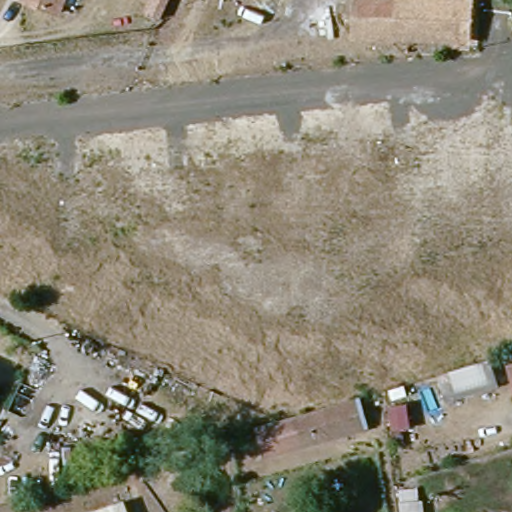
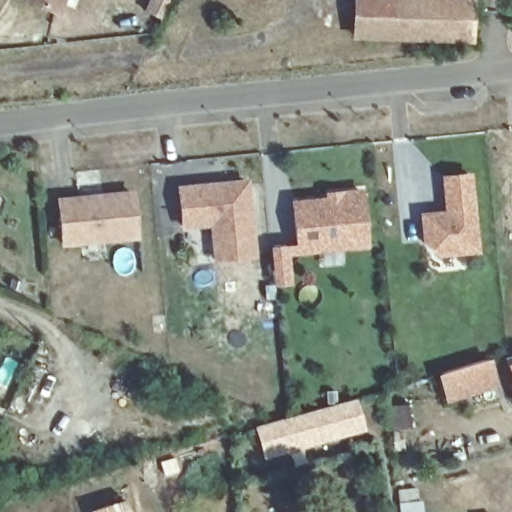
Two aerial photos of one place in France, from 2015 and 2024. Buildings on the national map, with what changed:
unchanged [(26,0),(63,0),(59,11),(26,0)]
unchanged [(148,0),(164,0),(160,8),(147,2),(148,0)]
unchanged [(470,39),(360,34),(363,0),(451,0),(473,1),(470,39)]
new [(445,210),(441,174),(472,171),(480,252),(442,256),(422,240),(419,211),(445,210)]
new [(250,177),(258,257),(212,262),(210,225),(181,228),(177,185),(250,177)]
new [(295,244),(291,200),(325,197),(325,191),(361,188),(367,247),(290,254),(292,284),(275,285),(270,246),(295,244)]
new [(135,189),(140,239),(61,247),(56,197),(135,189)]
unchanged [(497,361),(500,388),(452,401),(443,376),(497,361)]
unchanged [(369,430),(340,439),(330,407),(360,398),(369,430)]
unchanged [(270,460),(260,428),(330,407),(340,439),(270,460)]
unchanged [(134,512),(96,512),(95,508),(128,495),(134,512)]

